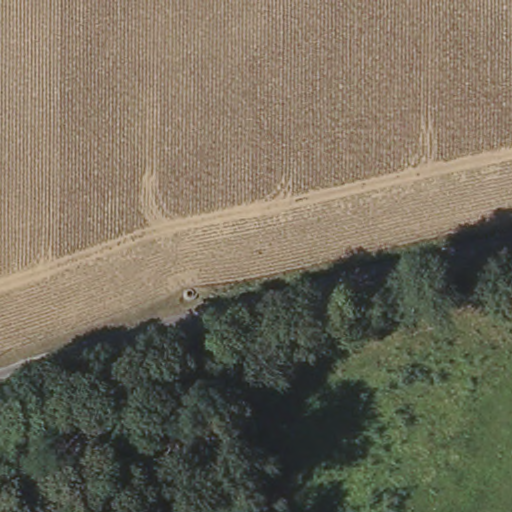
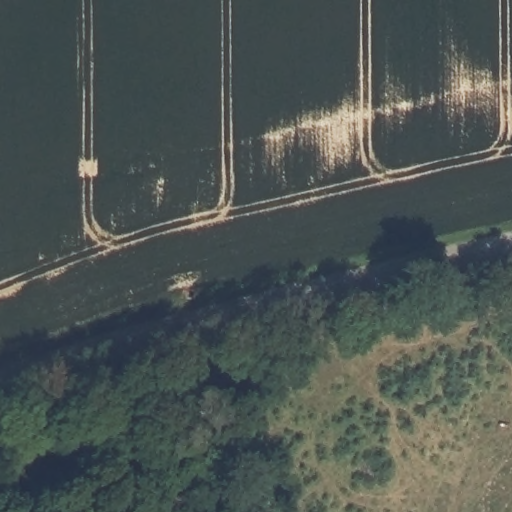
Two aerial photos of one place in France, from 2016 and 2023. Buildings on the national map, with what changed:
unchanged [(475,314),(457,317),(452,293),(468,287),(475,314)]

